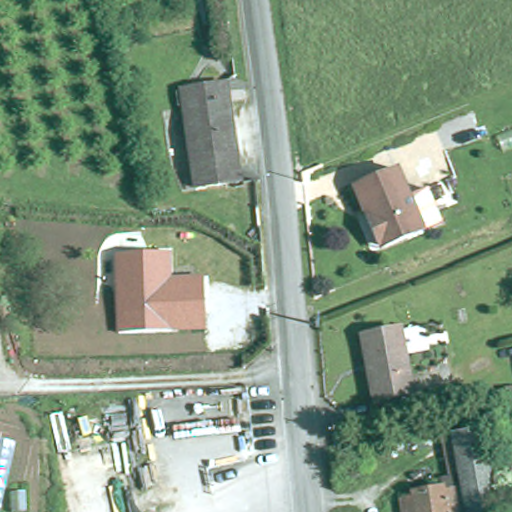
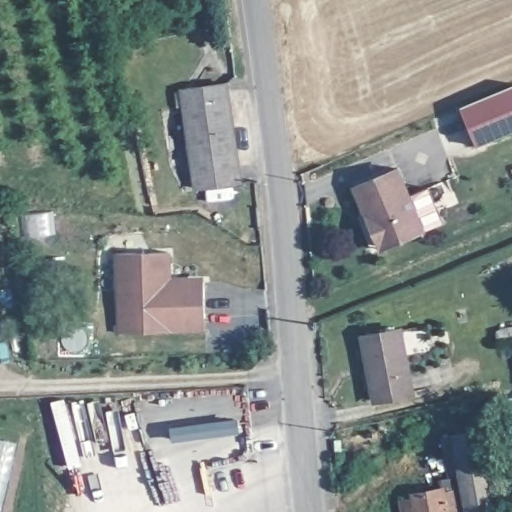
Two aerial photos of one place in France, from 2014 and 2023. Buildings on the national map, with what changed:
unchanged [(196,189),(182,91),(227,84),(240,182),(196,189)]
new [(477,147),(460,107),(512,85),(512,132),(477,147)]
unchanged [(365,207),(353,180),(397,162),(410,190),(437,178),(452,211),(387,240),(382,242),(365,207)]
unchanged [(169,252),(170,281),(206,280),(209,331),(117,335),(114,255),(169,252)]
unchanged [(375,401),(363,337),(400,331),(412,395),(375,401)]
unchanged [(418,494),(447,488),(445,481),(466,477),(457,435),(486,430),(501,512),(408,512),(407,501),(419,498),(418,494)]
unchanged [(335,453),(335,441),(342,440),(344,452),(335,453)]

